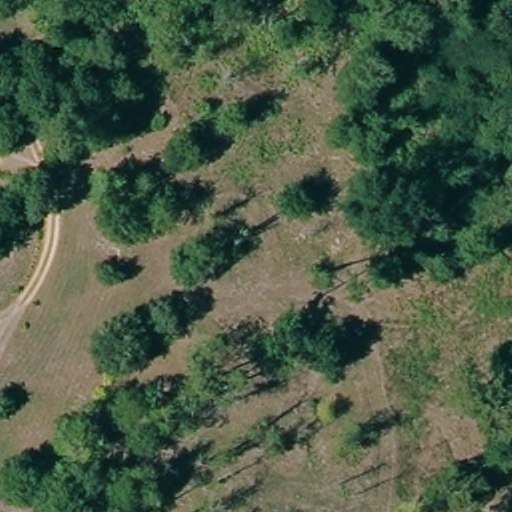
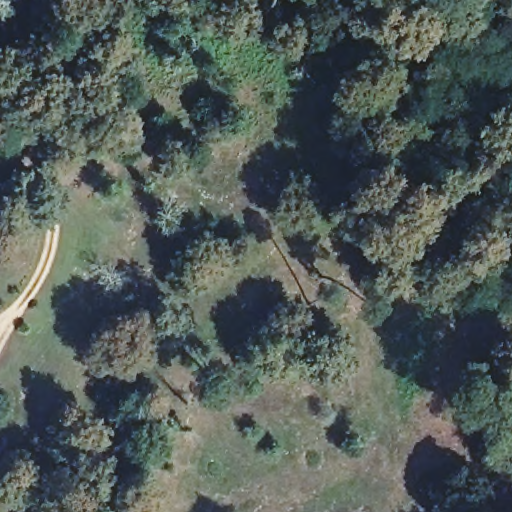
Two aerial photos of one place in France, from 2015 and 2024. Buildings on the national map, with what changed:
[]

